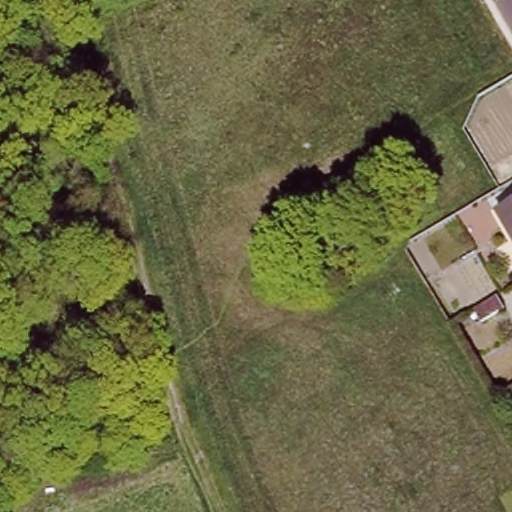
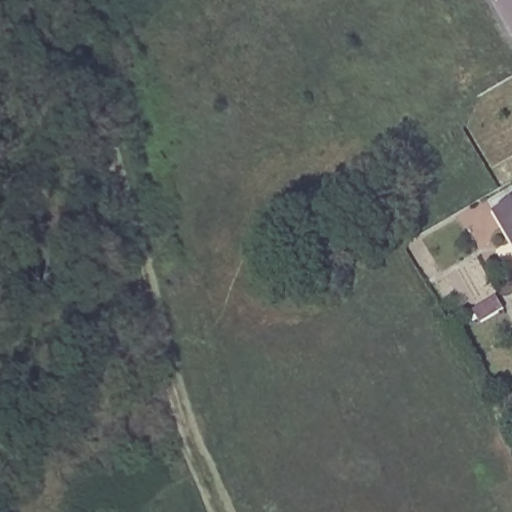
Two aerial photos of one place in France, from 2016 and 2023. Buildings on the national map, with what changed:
unchanged [(498,212),(512,203),(512,235),(498,212)]
unchanged [(474,309),(497,295),(506,309),(482,323),(474,309)]

